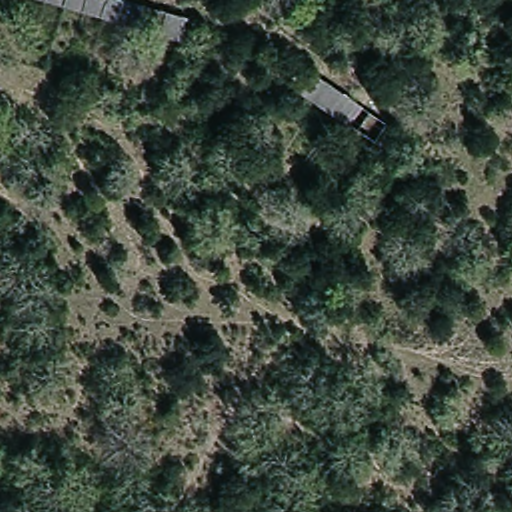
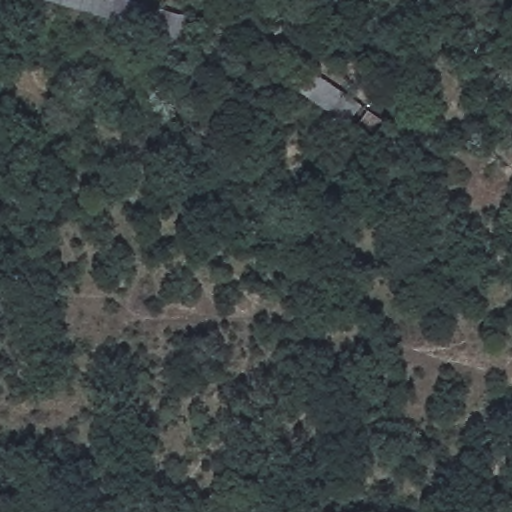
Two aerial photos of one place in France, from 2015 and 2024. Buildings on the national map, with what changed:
unchanged [(176,39),(34,0),(121,0),(182,17),(176,39)]
unchanged [(381,122),(370,142),(295,92),(308,74),(381,122)]

